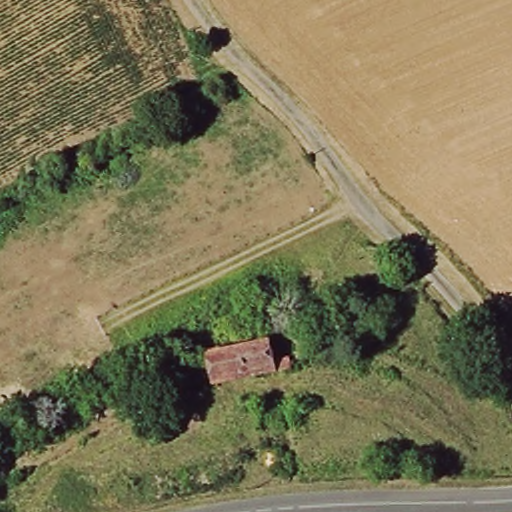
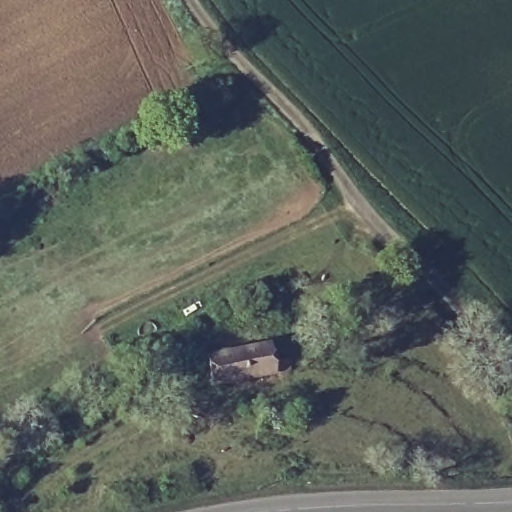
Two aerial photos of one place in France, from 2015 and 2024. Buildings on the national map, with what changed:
unchanged [(262,340),(274,372),(217,389),(208,360),(262,340)]

